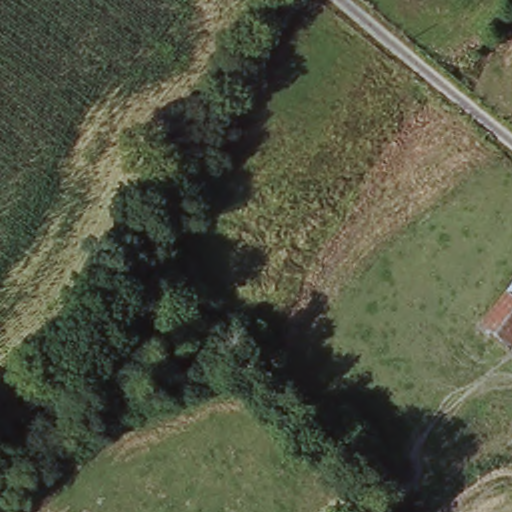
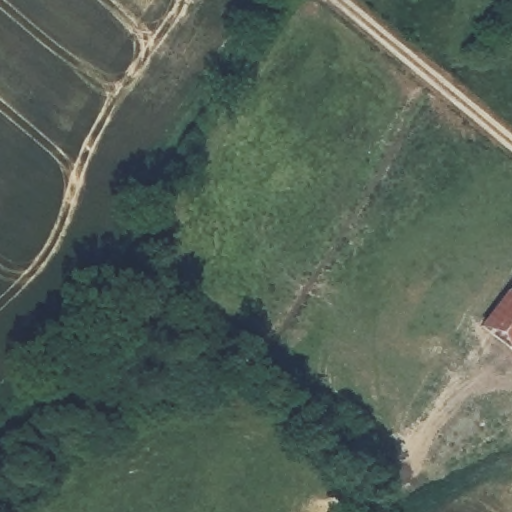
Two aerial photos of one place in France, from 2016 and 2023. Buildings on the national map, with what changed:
unchanged [(486,323),(512,289),(512,344),(493,330),(486,323)]

